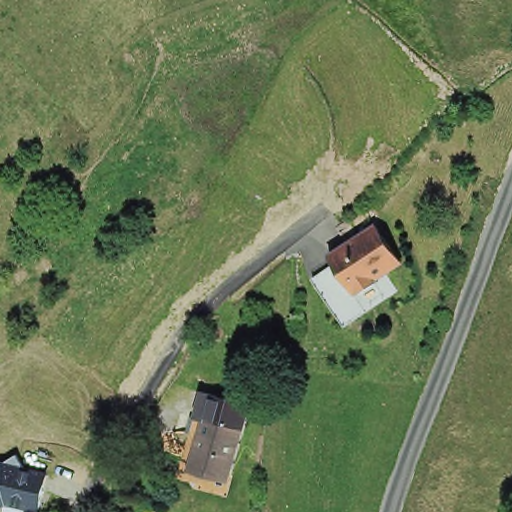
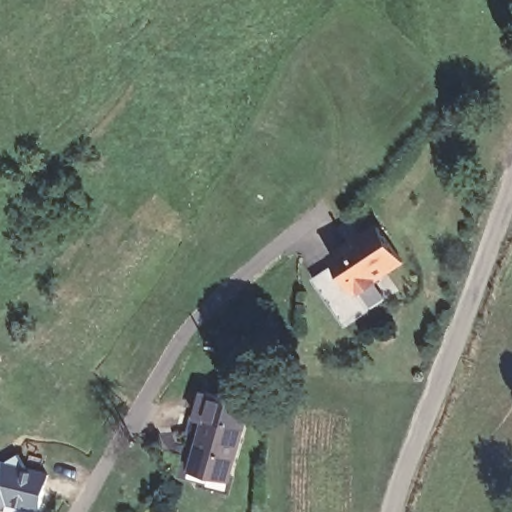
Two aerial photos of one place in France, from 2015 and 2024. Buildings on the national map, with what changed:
unchanged [(328,250),(370,213),(400,246),(375,268),(379,271),(364,284),(361,281),(355,282),(328,250)]
unchanged [(263,365),(260,380),(239,375),(242,361),(263,365)]
unchanged [(231,484),(191,476),(198,440),(189,438),(192,423),(201,424),(241,433),(231,484)]
unchanged [(43,472),(35,505),(3,498),(0,500),(0,459),(13,451),(23,467),(43,472)]

